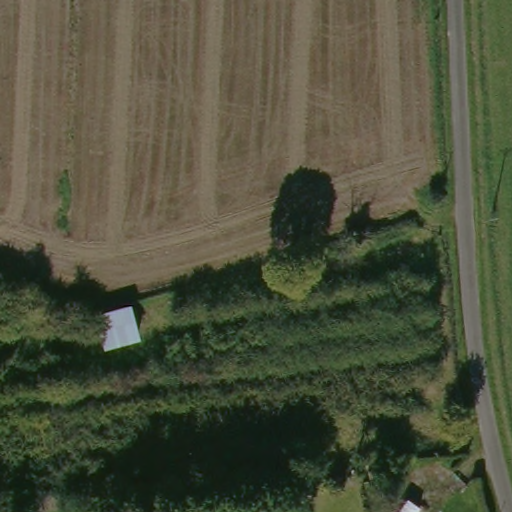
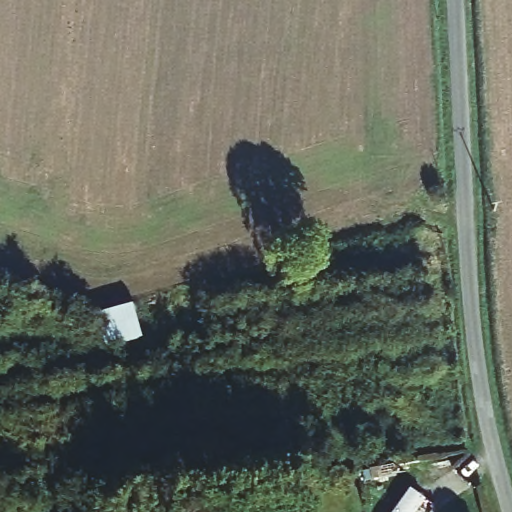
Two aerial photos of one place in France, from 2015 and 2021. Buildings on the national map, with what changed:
unchanged [(138,336),(105,345),(99,312),(128,302),(138,336)]
unchanged [(405,491),(426,505),(423,512),(391,512),(405,491)]

